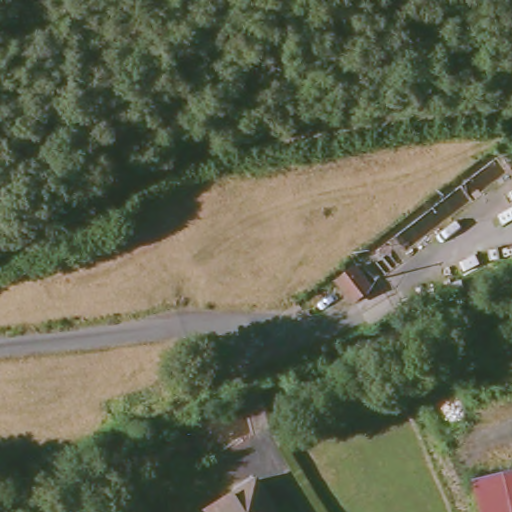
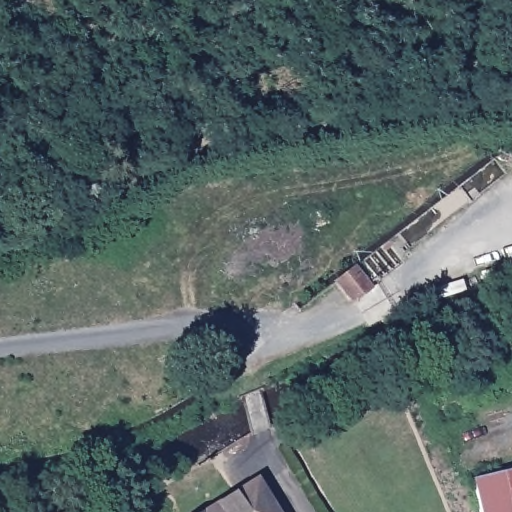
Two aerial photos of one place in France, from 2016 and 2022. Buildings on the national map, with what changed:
unchanged [(359,266),(376,288),(358,302),(341,280),(359,266)]
unchanged [(480,512),(472,478),(512,469),(512,512),(480,512)]
unchanged [(272,512),(201,512),(251,480),(272,512)]

